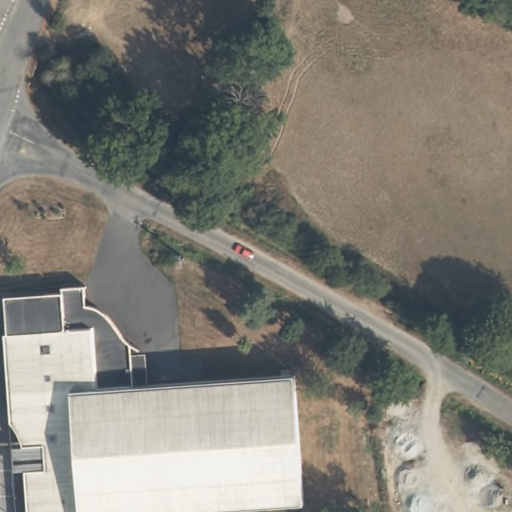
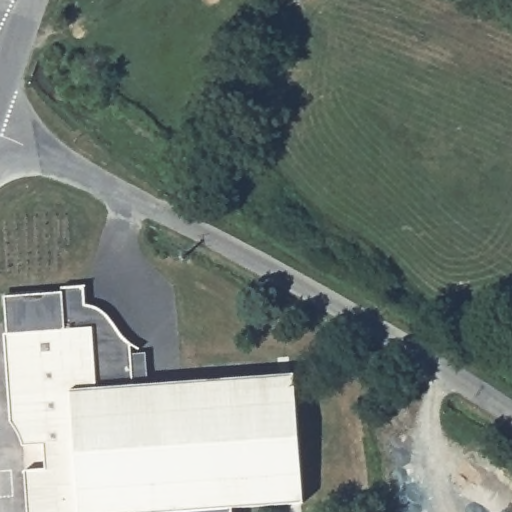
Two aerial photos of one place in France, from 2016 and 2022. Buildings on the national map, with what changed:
unchanged [(59,295),(59,290),(82,288),(84,307),(97,310),(107,317),(120,335),(130,345),(134,387),(136,387),(136,388),(100,389),(92,320),(4,321),(2,300),(59,295)]
unchanged [(11,425),(2,338),(6,338),(4,321),(92,320),(100,389),(136,388),(136,387),(294,372),(306,500),(235,506),(81,511),(81,512),(30,512),(27,472),(44,471),(42,445),(26,446),(11,425)]
unchanged [(235,506),(236,512),(81,512),(81,511),(235,506)]

